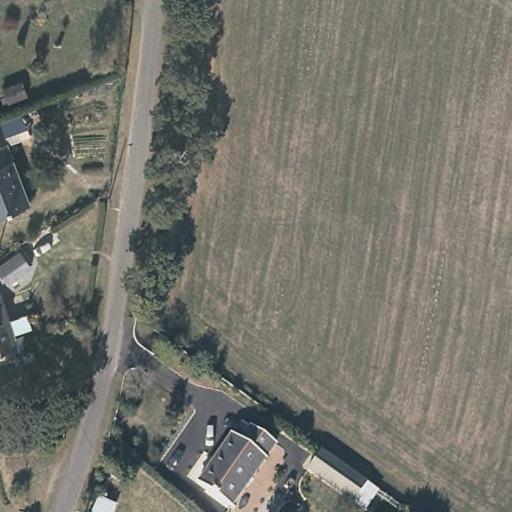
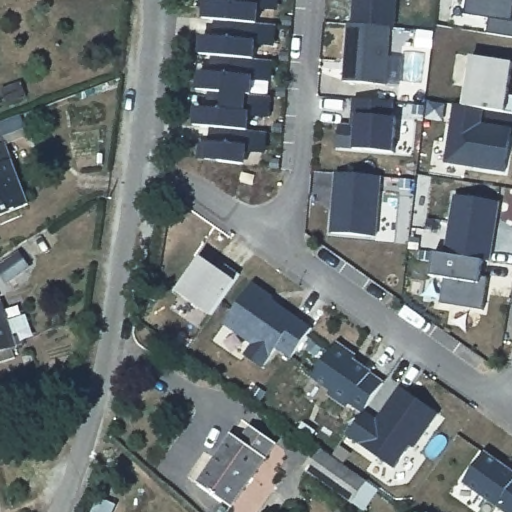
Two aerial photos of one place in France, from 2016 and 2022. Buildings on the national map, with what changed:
new [(259,10),(258,23),(277,25),(275,46),(256,45),(255,59),(274,61),(271,82),(253,81),(251,94),(248,94),(248,97),(271,97),(269,117),(250,117),(248,130),(267,133),(265,153),(247,152),(245,163),(204,159),(205,142),(212,143),(213,126),(193,124),(195,106),(210,108),(212,89),(196,88),(198,71),(214,73),(215,55),(199,54),(200,34),(216,36),(218,19),(202,18),(204,0),(212,0),(219,1),(219,0),(279,0),(278,10),(259,10)]
new [(356,13),(357,0),(400,0),(398,16),(356,13)]
new [(492,38),(494,23),(470,19),(472,0),(512,0),(512,41),(492,38)]
new [(351,28),(393,32),(389,89),(346,86),(351,28)]
new [(477,61),(512,67),(512,117),(489,114),(470,111),(477,61)]
new [(340,127),(356,128),(356,118),(352,118),(353,101),(393,104),(392,120),(397,120),(394,154),(338,150),(340,127)]
new [(460,109),(470,111),(489,114),(487,129),(512,133),(512,171),(511,177),(450,168),(460,109)]
unchanged [(2,220),(0,221),(0,150),(0,126),(1,126),(8,146),(34,208),(2,220)]
new [(340,179),(384,183),(380,243),(335,239),(340,179)]
new [(456,196),(500,202),(490,261),(485,260),(447,255),(456,196)]
new [(439,254),(447,255),(485,260),(482,277),(490,278),(485,311),(442,304),(446,279),(435,277),(439,254)]
new [(199,256),(220,270),(225,263),(239,273),(210,314),(175,290),(199,256)]
new [(252,282),(272,296),(266,304),(271,307),(275,301),(311,327),(285,365),(270,355),(262,367),(244,354),(252,343),(224,323),(252,282)]
unchanged [(0,352),(0,305),(5,303),(17,346),(0,352)]
new [(340,342),(359,355),(356,359),(375,372),(374,373),(387,382),(367,409),(366,411),(353,402),(351,405),(333,392),(335,389),(316,376),(340,342)]
new [(366,411),(367,409),(380,418),(403,384),(442,412),(418,447),(414,444),(398,467),(350,434),(366,411)]
unchanged [(271,446),(225,510),(193,487),(228,438),(235,445),(247,429),(271,446)]
new [(486,454),(512,472),(512,512),(509,512),(466,483),(486,454)]
unchanged [(369,489),(354,510),(308,476),(323,456),(369,489)]

